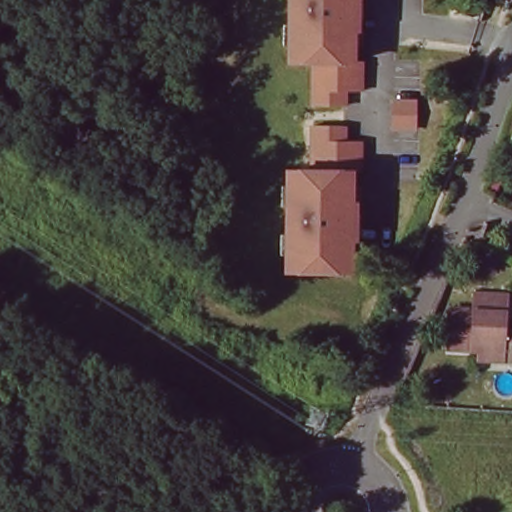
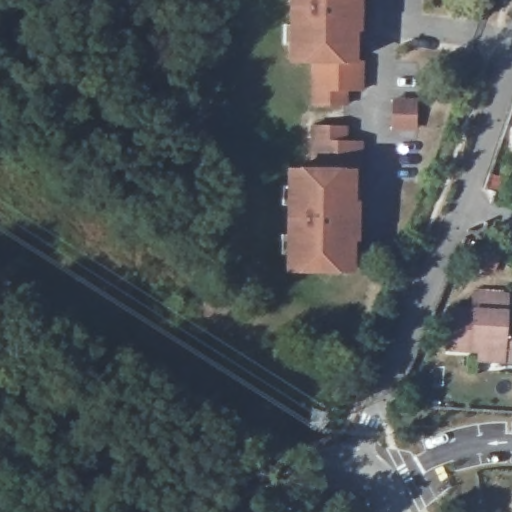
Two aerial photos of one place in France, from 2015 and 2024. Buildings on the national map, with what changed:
unchanged [(348,60),(356,60),(355,90),(340,90),(339,105),(308,105),(308,59),(284,59),(285,42),(290,42),(290,25),(285,25),(285,0),(356,0),(355,30),(355,45),(349,44),(348,60)]
unchanged [(417,106),(417,127),(391,127),(391,106),(417,106)]
unchanged [(512,108),(512,122),(507,121),(512,108)]
unchanged [(353,255),(346,255),(346,270),(282,269),(283,253),(288,253),(288,235),(283,235),(283,204),(288,204),(288,186),(283,186),(284,170),(307,170),(307,125),(339,125),(338,140),(355,140),(355,170),(348,170),(347,186),(354,186),(354,201),(353,240),(353,255)]
unchanged [(473,354),(474,344),(442,342),(445,302),(470,303),(470,287),(502,289),(501,305),(498,355),(473,354)]

